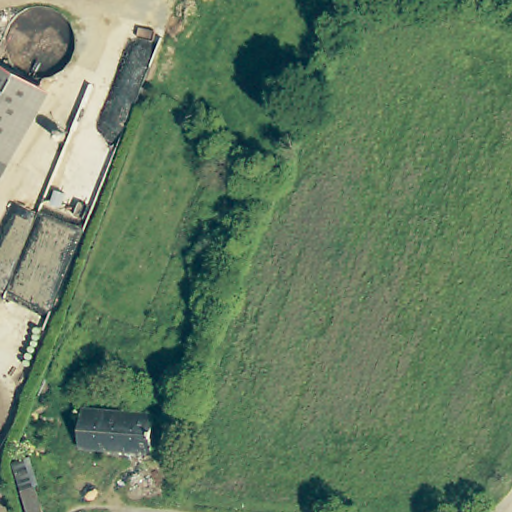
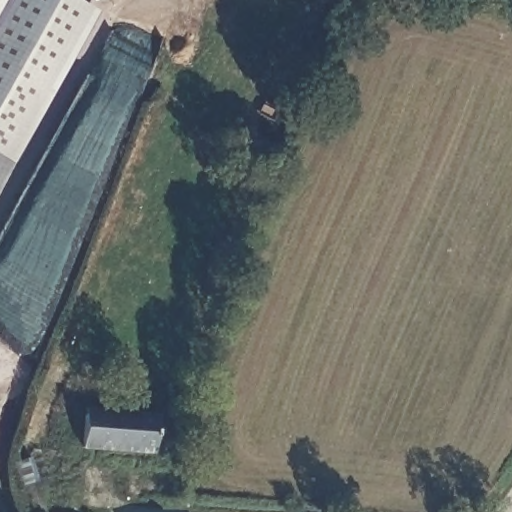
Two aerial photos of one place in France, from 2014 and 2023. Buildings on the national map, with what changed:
new [(75,0),(98,13),(58,89),(8,61),(0,74),(0,0),(75,0)]
unchanged [(8,61),(58,89),(16,161),(0,152),(0,75),(8,61)]
unchanged [(16,161),(0,189),(0,152),(16,161)]
unchanged [(165,414),(163,451),(86,448),(88,411),(165,414)]
unchanged [(38,512),(27,512),(12,461),(31,455),(48,507),(38,512)]

